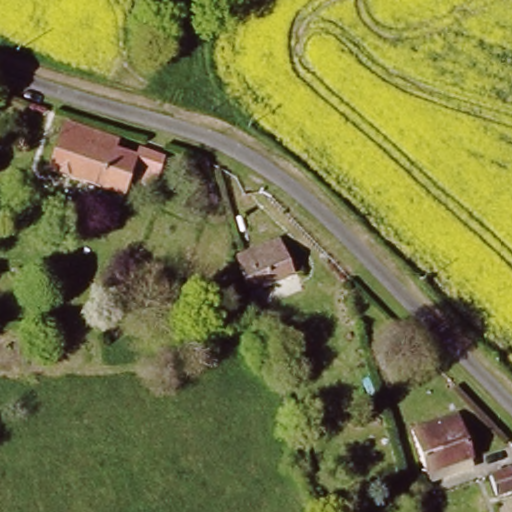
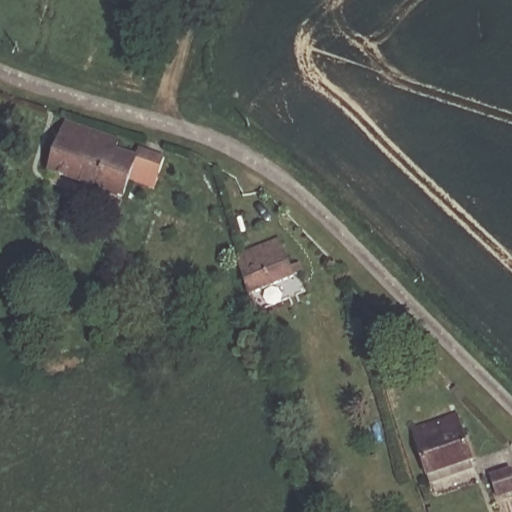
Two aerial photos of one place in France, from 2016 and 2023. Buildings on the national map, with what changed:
unchanged [(130,180),(125,195),(54,169),(70,121),(120,139),(117,147),(140,154),(142,147),(167,156),(158,182),(157,188),(130,180)]
unchanged [(282,241),(293,268),(302,265),(305,273),(252,296),(239,259),(282,241)]
unchanged [(434,485),(431,475),(417,432),(462,416),(476,460),(479,470),(434,485)]
unchanged [(512,489),(500,493),(495,476),(512,470),(512,489)]

